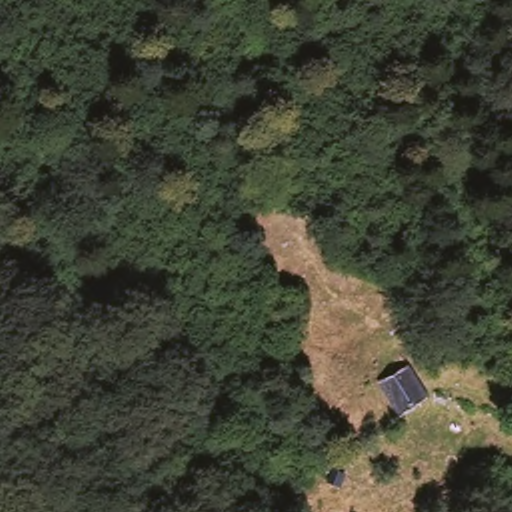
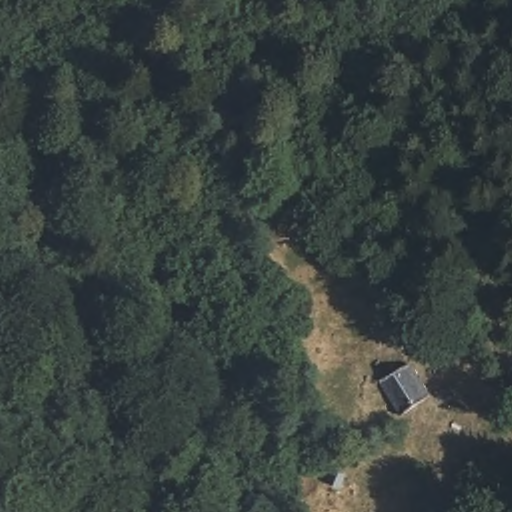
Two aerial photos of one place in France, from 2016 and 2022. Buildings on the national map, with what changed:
unchanged [(427,399),(399,415),(377,381),(409,364),(427,399)]

